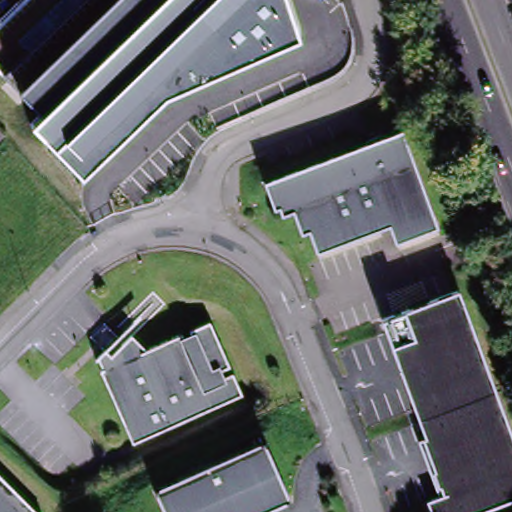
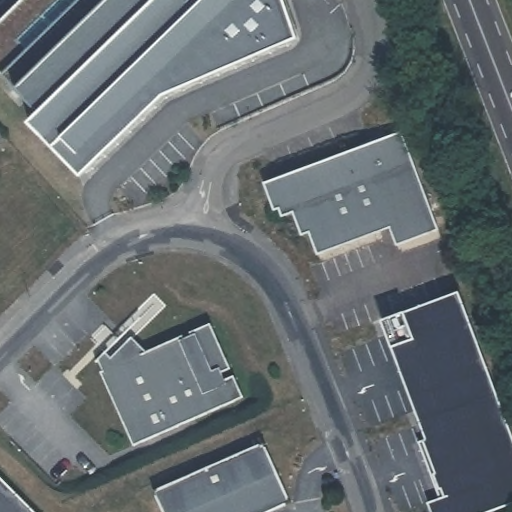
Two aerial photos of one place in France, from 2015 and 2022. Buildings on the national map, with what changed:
unchanged [(295,40),(163,96),(81,176),(27,124),(38,113),(16,91),(18,89),(0,72),(0,20),(20,0),(279,0),(295,40)]
unchanged [(283,212),(278,214),(269,186),(409,140),(441,238),(400,252),(394,235),(320,259),(312,237),(305,239),(297,216),(285,220),(283,212)]
unchanged [(451,503),(448,495),(446,496),(440,480),(442,480),(430,447),(432,445),(391,337),(388,326),(465,298),(470,310),(512,421),(512,506),(496,512),(437,512),(435,509),(451,503)]
unchanged [(213,325),(233,370),(220,376),(223,383),(236,377),(245,398),(135,447),(103,373),(105,372),(100,360),(108,353),(114,358),(135,338),(149,353),(186,336),(189,344),(195,341),(192,334),(213,325)]
unchanged [(293,508),(285,512),(163,512),(156,498),(267,449),(293,508)]
unchanged [(29,512),(0,512),(0,482),(29,512)]

